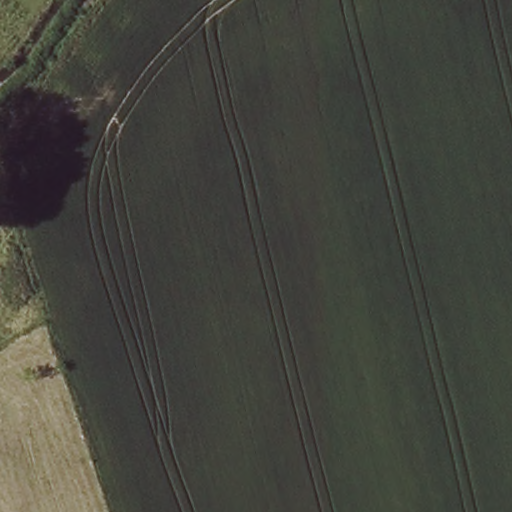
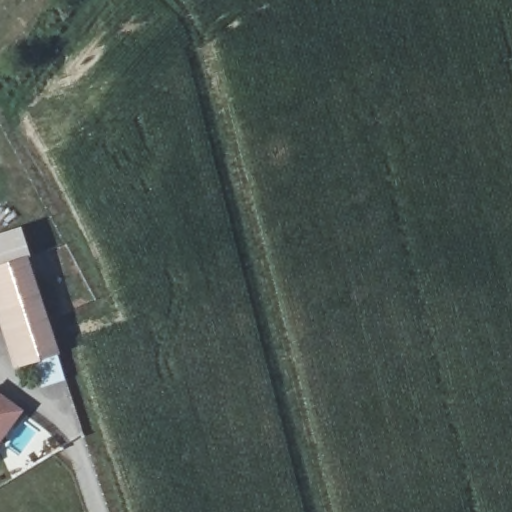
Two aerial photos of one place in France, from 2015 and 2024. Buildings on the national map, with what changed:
new [(18,227),(59,355),(12,370),(0,331),(0,233),(18,227)]
new [(22,411),(0,441),(0,395),(22,411)]

